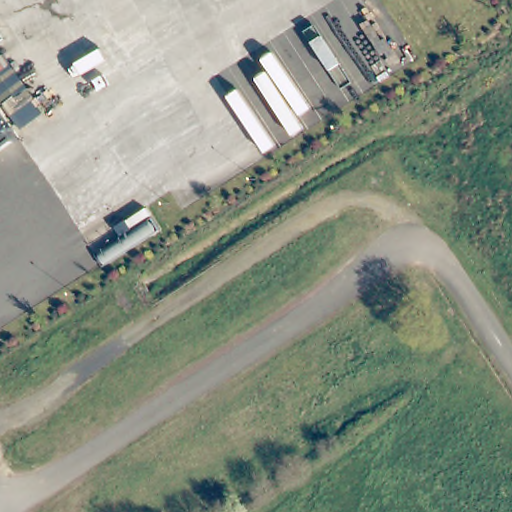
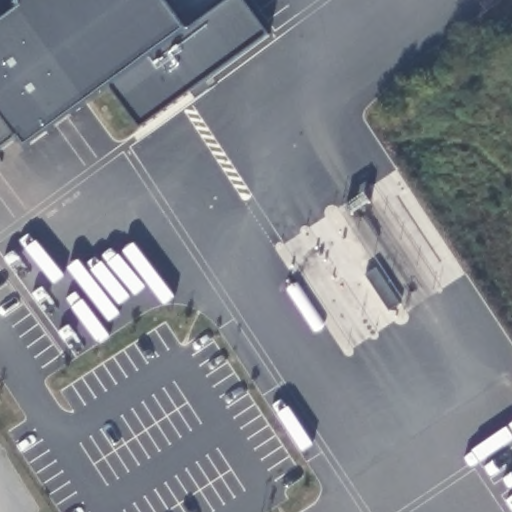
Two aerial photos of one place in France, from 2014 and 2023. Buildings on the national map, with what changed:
new [(16,0),(162,0),(183,30),(229,0),(245,0),(269,35),(140,128),(111,85),(27,146),(16,139),(0,118),(0,24),(23,8),(16,0)]
unchanged [(0,151),(0,118),(16,139),(0,151)]

